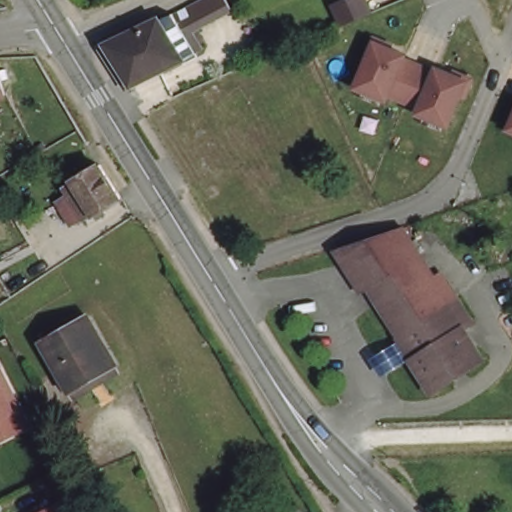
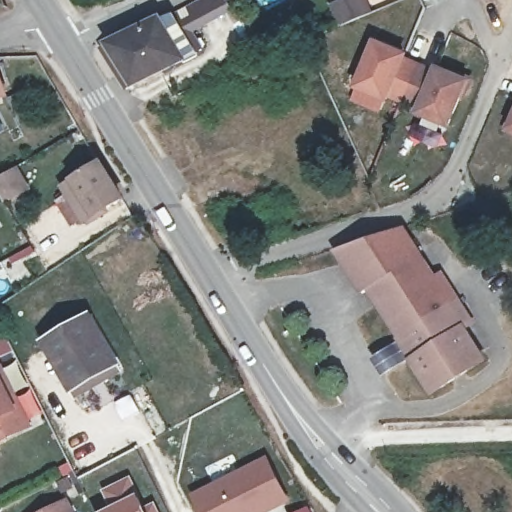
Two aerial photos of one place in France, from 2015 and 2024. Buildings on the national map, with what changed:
unchanged [(374,14),(341,27),(329,3),(337,0),(368,0),(374,14)]
unchanged [(165,34),(180,62),(131,87),(108,49),(191,6),(196,17),(165,34)]
unchanged [(393,92),(391,97),(361,84),(381,40),(410,52),(409,57),(424,64),(423,67),(409,99),(393,92)]
unchanged [(441,71),(443,66),(472,79),(453,122),(424,110),(426,106),(409,99),(423,67),(424,64),(441,71)]
unchanged [(3,99),(0,100),(0,87),(3,99)]
unchanged [(56,205),(67,199),(63,190),(74,183),(106,165),(128,202),(97,219),(73,237),(56,205)]
unchanged [(368,290),(359,295),(331,250),(404,227),(424,258),(368,290)]
unchanged [(424,258),(455,313),(461,310),(470,327),(464,330),(484,363),(429,394),(411,361),(416,358),(404,337),(398,340),(368,290),(424,258)]
unchanged [(68,392),(40,341),(60,329),(65,337),(92,324),(115,367),(68,392)]
unchanged [(31,423),(0,439),(0,362),(31,423)]
new [(291,502),(270,512),(198,512),(188,492),(266,455),(291,502)]
new [(160,512),(99,512),(109,507),(101,488),(131,475),(139,493),(145,506),(155,501),(160,512)]
unchanged [(76,512),(43,512),(69,498),(76,512)]

